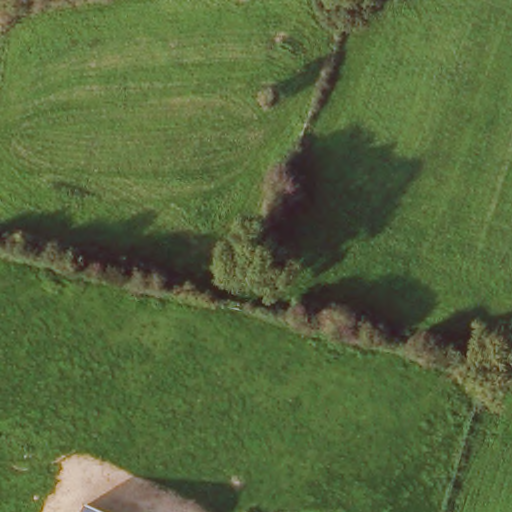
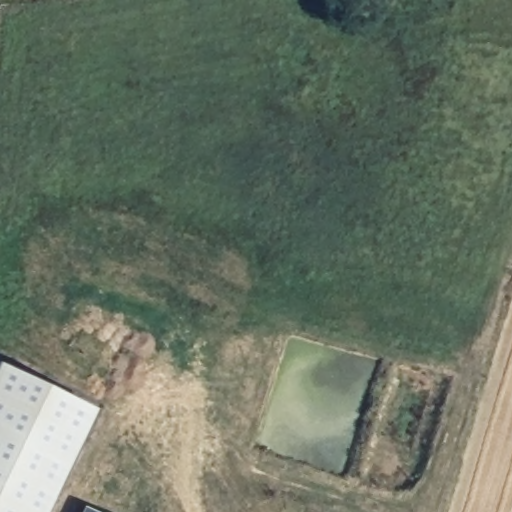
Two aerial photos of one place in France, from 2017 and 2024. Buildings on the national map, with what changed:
new [(100,406),(50,512),(0,512),(0,360),(100,406)]
unchanged [(83,508),(91,512),(82,512),(83,508)]

